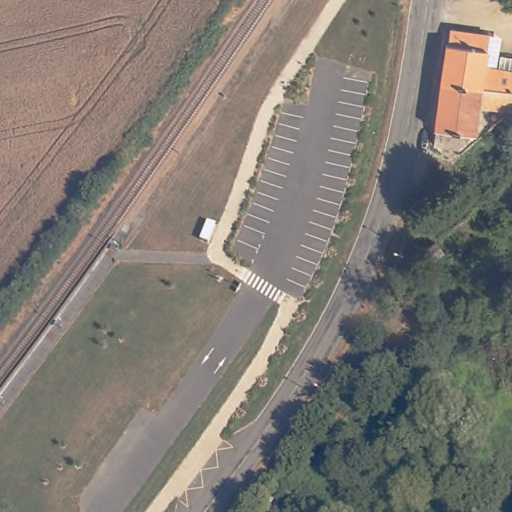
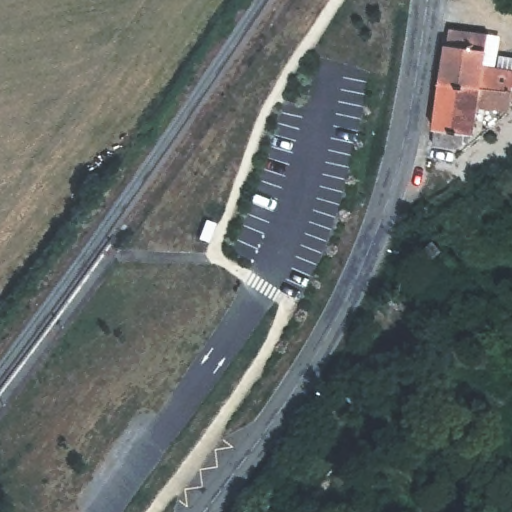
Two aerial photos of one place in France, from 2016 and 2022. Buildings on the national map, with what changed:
unchanged [(443,93),(451,23),(490,30),(486,53),(479,96),(443,93)]
unchanged [(486,53),(512,58),(512,92),(509,106),(478,103),(479,96),(486,53)]
unchanged [(478,103),(474,129),(466,128),(467,145),(451,145),(437,141),(434,140),(443,93),(479,96),(478,103)]

